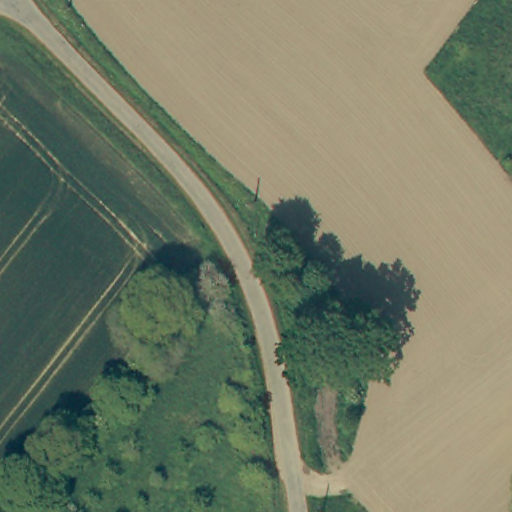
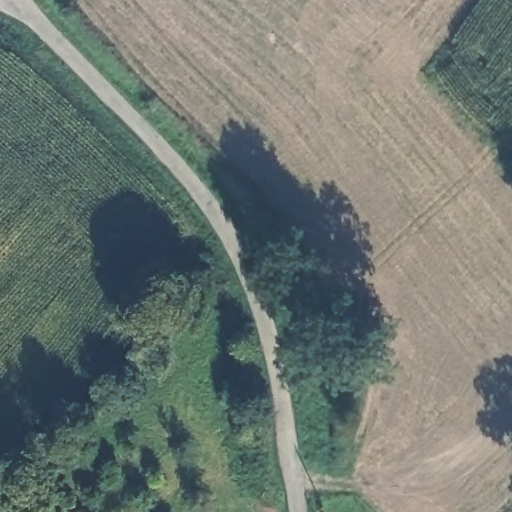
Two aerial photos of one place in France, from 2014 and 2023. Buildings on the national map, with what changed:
[]

